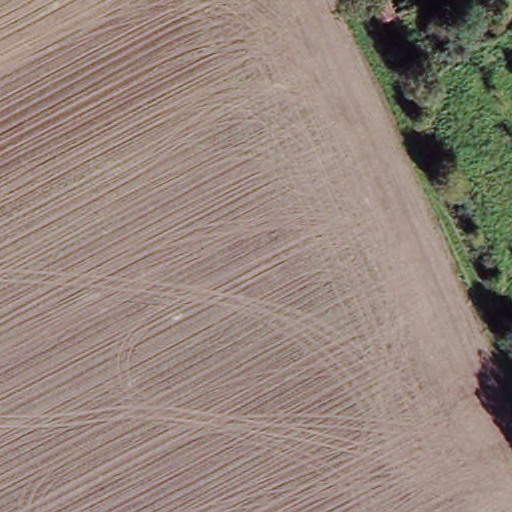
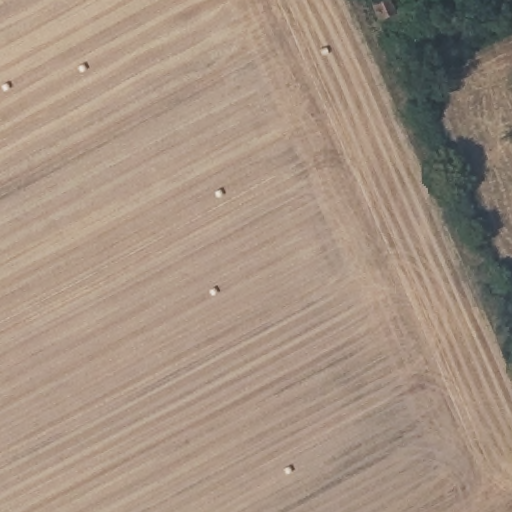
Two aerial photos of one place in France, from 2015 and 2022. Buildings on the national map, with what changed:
unchanged [(407,1),(391,7),(388,0),(406,0),(407,1)]

